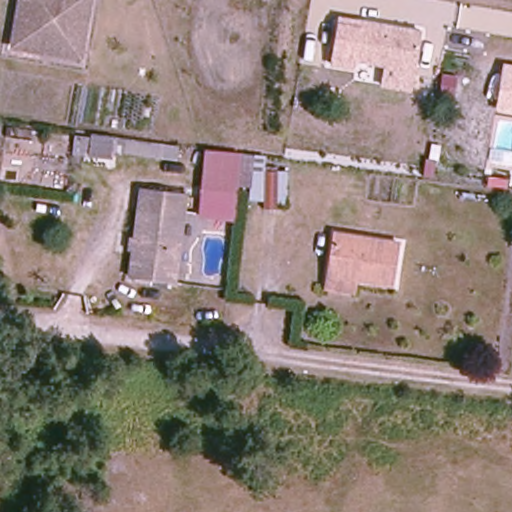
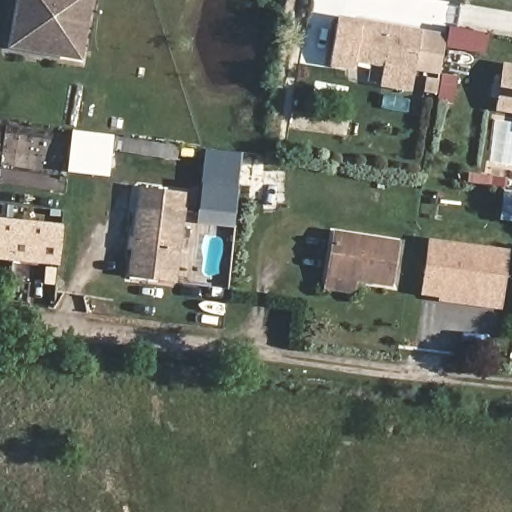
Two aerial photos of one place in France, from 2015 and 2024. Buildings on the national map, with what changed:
unchanged [(59,50),(12,44),(19,0),(84,0),(79,35),(76,51),(59,50)]
unchanged [(356,61),(356,70),(328,67),(337,17),(364,21),(356,61)]
unchanged [(364,21),(421,30),(413,72),(356,61),(364,21)]
unchanged [(493,110),(501,63),(512,65),(512,113),(493,110)]
new [(108,176),(67,171),(73,130),(113,135),(113,136),(94,137),(96,156),(111,154),(108,176)]
unchanged [(161,160),(113,153),(96,156),(94,137),(113,136),(163,145),(161,160)]
unchanged [(239,186),(239,194),(195,187),(202,148),(243,154),(239,186)]
unchanged [(272,211),(262,210),(263,204),(247,201),(247,186),(239,186),(243,154),(268,155),(267,169),(279,170),(272,211)]
unchanged [(239,194),(235,221),(193,215),(195,187),(239,194)]
unchanged [(181,195),(171,285),(130,279),(140,188),(181,195)]
new [(0,219),(61,225),(57,266),(0,259),(0,219)]
unchanged [(326,291),(327,278),(334,235),(397,243),(391,285),(358,281),(356,295),(326,291)]
new [(437,297),(419,295),(426,239),(509,250),(501,310),(436,302),(437,297)]

